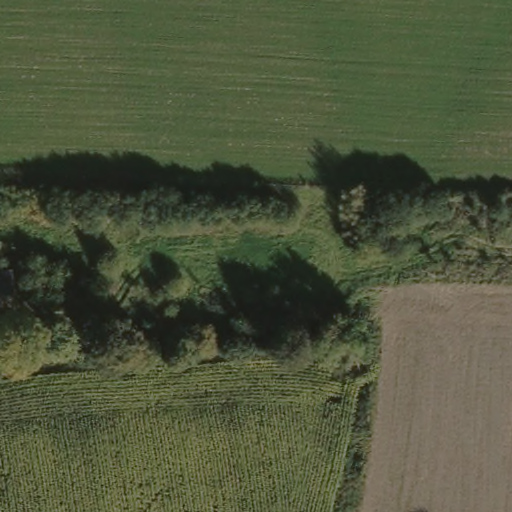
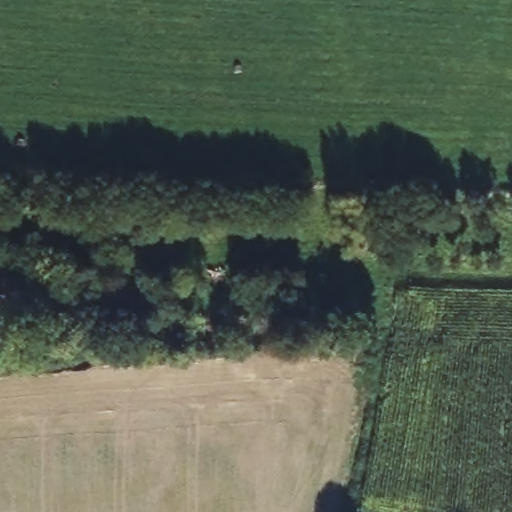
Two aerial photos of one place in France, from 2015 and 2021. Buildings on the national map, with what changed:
unchanged [(14,297),(0,299),(0,276),(11,275),(14,297)]

